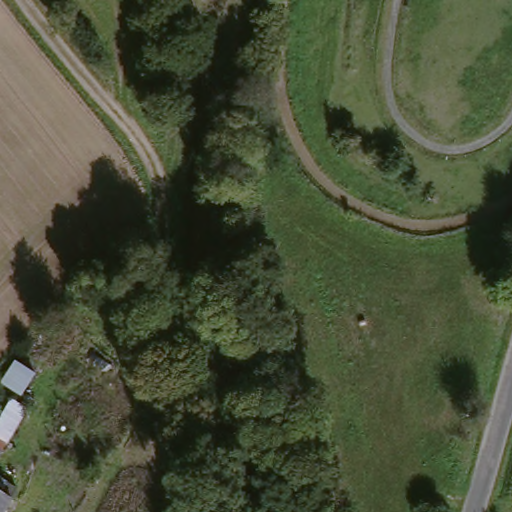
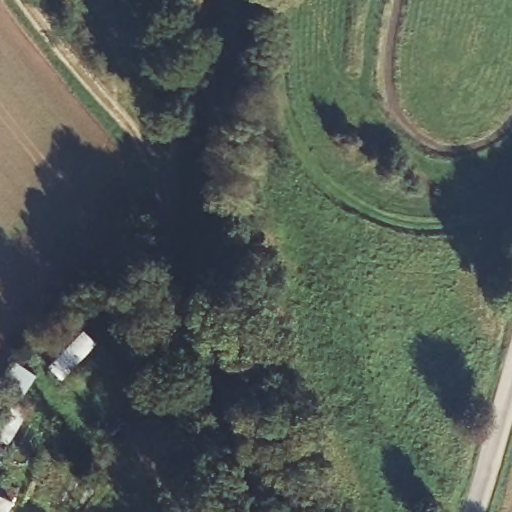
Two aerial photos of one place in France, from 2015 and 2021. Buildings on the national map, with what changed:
unchanged [(17,396),(2,383),(22,356),(43,373),(26,396),(34,402),(2,454),(0,453),(0,424),(17,396)]
unchanged [(2,454),(0,457),(0,453),(2,454)]
unchanged [(8,485),(0,498),(0,480),(8,485)]
unchanged [(6,512),(0,512),(0,500),(10,506),(6,512)]

